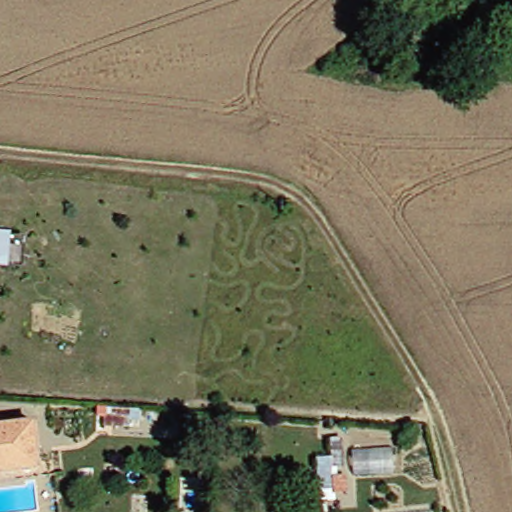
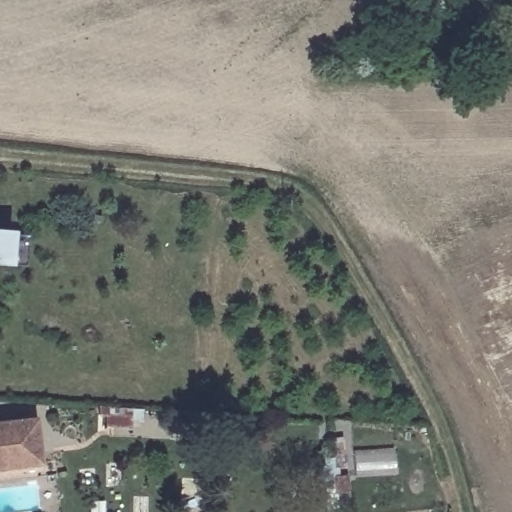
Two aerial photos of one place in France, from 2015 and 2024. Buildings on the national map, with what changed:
unchanged [(13,266),(0,265),(0,233),(15,234),(13,266)]
unchanged [(0,426),(41,425),(41,469),(41,471),(0,471),(0,426)]

